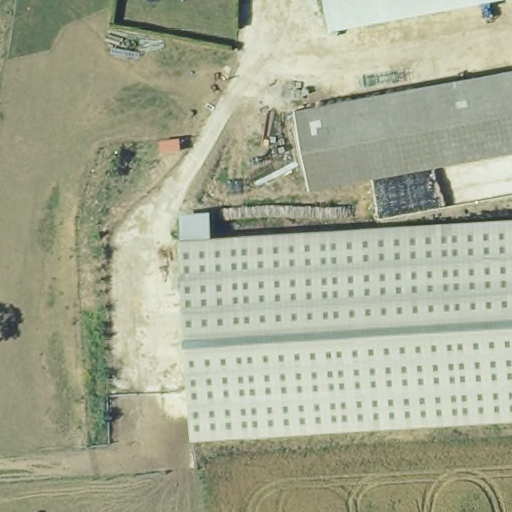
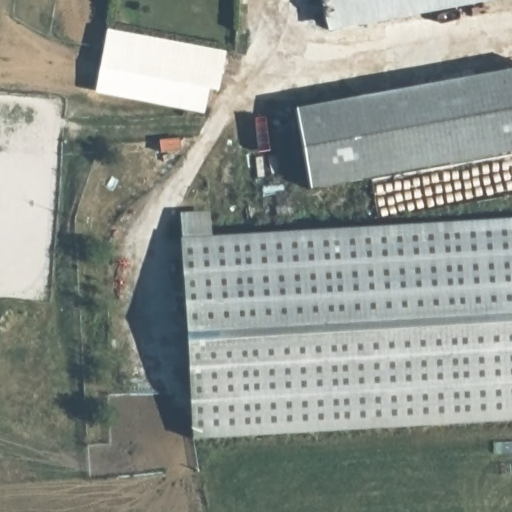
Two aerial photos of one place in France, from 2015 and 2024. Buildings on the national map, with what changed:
unchanged [(325,0),(512,0),(332,35),(325,0)]
new [(96,93),(107,31),(227,53),(219,91),(209,90),(205,114),(96,93)]
unchanged [(315,190),(302,110),(512,71),(512,153),(315,190)]
unchanged [(512,217),(512,419),(202,437),(197,437),(185,236),(186,236),(185,215),(214,214),(216,235),(227,234),(512,217)]

